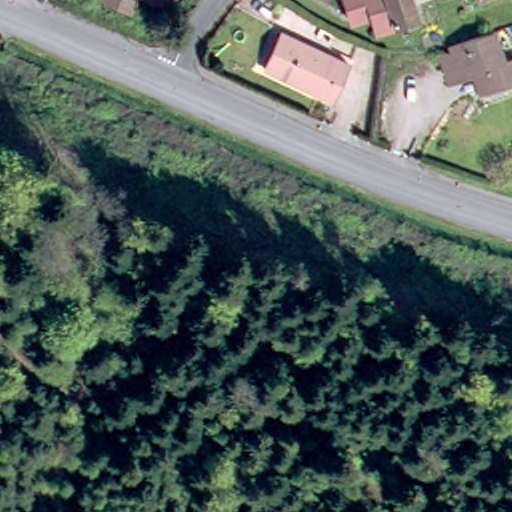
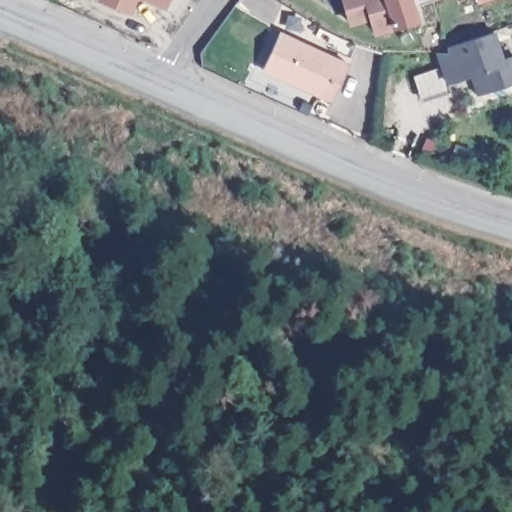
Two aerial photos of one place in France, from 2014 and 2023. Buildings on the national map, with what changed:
unchanged [(133,8),(114,0),(136,0),(133,8)]
unchanged [(167,2),(163,0),(168,0),(167,2)]
unchanged [(380,13),(361,18),(356,0),(421,0),(426,16),(385,28),(380,13)]
unchanged [(474,1),(474,0),(477,0),(474,1)]
unchanged [(270,66),(285,31),(350,62),(335,96),(270,66)]
unchanged [(445,47),(491,31),(503,60),(512,56),(512,81),(485,90),(477,70),(448,81),(437,52),(446,52),(445,47)]

